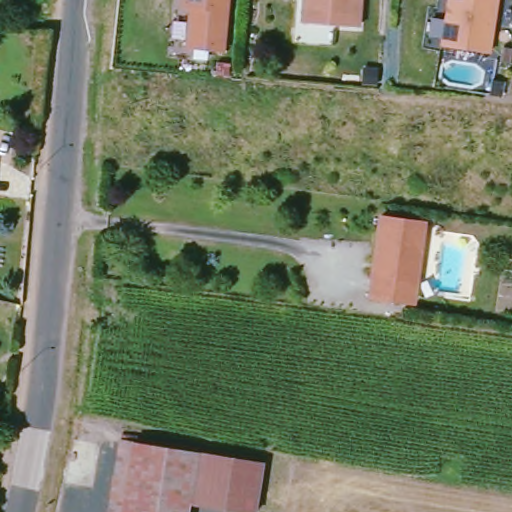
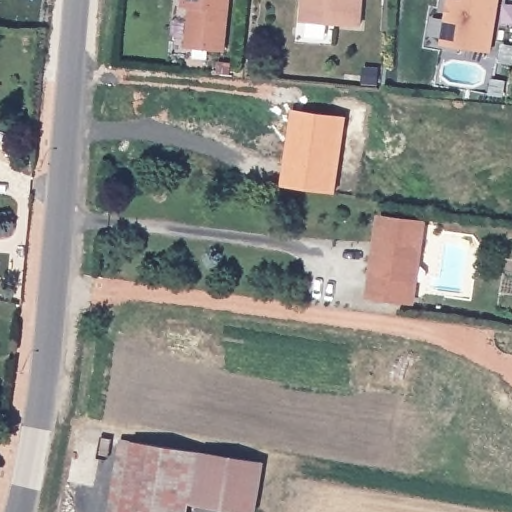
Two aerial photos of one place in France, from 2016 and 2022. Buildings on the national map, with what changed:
unchanged [(223,52),(186,49),(189,20),(193,16),(194,9),(182,7),(183,0),(228,0),(223,52)]
unchanged [(360,31),(302,27),(304,6),(309,2),(309,0),(362,0),(360,31)]
unchanged [(486,53),(438,45),(445,0),(494,0),(486,53)]
unchanged [(372,75),(371,87),(356,86),(357,74),(372,75)]
unchanged [(501,82),(500,97),(488,96),(489,80),(501,82)]
new [(333,194),(281,187),(291,111),(344,117),(333,194)]
unchanged [(426,225),(421,263),(410,261),(404,301),(367,296),(378,219),(426,225)]
unchanged [(261,461),(253,512),(189,501),(187,512),(118,512),(131,438),(261,461)]

